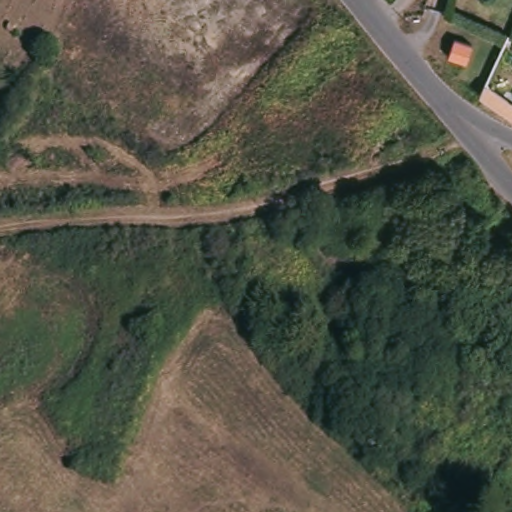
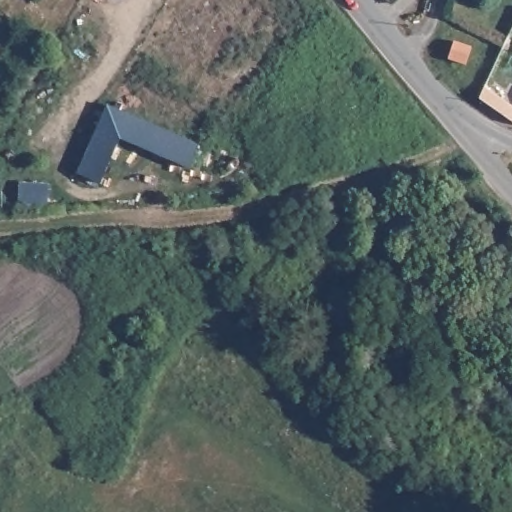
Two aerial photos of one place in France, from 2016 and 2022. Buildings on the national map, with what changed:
unchanged [(444,65),(451,49),(470,57),(463,74),(444,65)]
new [(512,101),(512,120),(498,114),(476,99),(482,88),(512,101)]
new [(107,103),(198,143),(188,166),(120,135),(100,181),(77,171),(107,103)]

